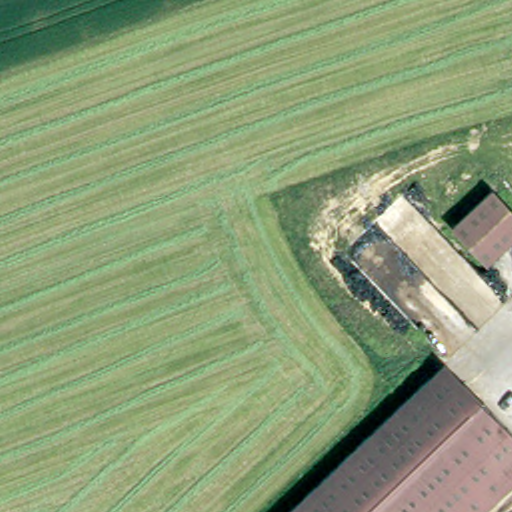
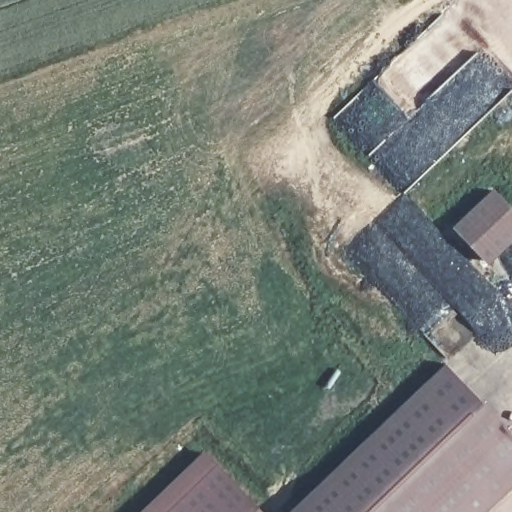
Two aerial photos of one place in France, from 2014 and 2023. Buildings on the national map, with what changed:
unchanged [(512,237),(489,258),(456,222),(492,187),(512,208),(512,237)]
unchanged [(512,473),(472,512),(284,512),(444,357),(512,426),(512,473)]
new [(203,450),(262,512),(138,512),(203,450)]

